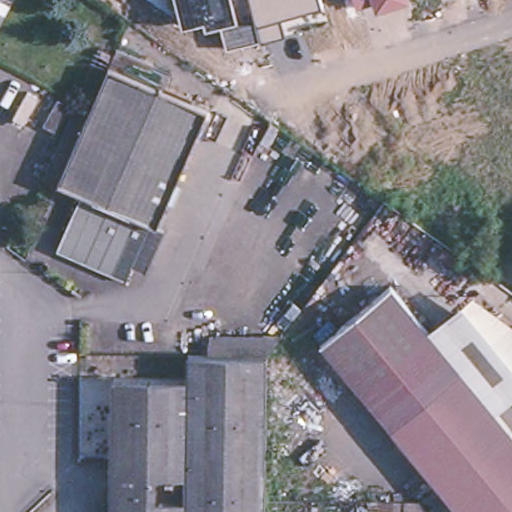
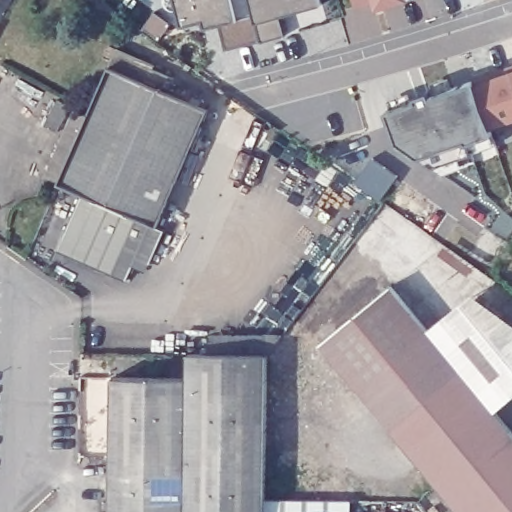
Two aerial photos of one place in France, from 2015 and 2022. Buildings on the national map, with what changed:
unchanged [(264,40),(229,49),(219,11),(208,14),(209,19),(184,25),(178,0),(254,0),(264,40)]
unchanged [(326,3),(283,15),(289,34),(264,41),(264,40),(254,0),(325,0),(326,3)]
unchanged [(361,3),(360,0),(371,0),(361,3)]
unchanged [(379,0),(402,0),(381,6),(379,0)]
unchanged [(117,49),(155,65),(153,70),(169,76),(163,91),(208,110),(157,226),(58,183),(46,178),(75,111),(88,116),(117,49)]
new [(492,127),(497,145),(469,149),(466,142),(489,133),(471,81),(512,68),(512,120),(492,127)]
new [(415,100),(414,96),(427,91),(429,96),(471,81),(489,133),(466,142),(470,152),(431,166),(396,142),(385,110),(415,100)]
unchanged [(59,99),(71,106),(57,132),(45,125),(59,99)]
unchanged [(157,226),(164,230),(149,263),(136,257),(126,280),(58,250),(82,195),(157,226)]
unchanged [(461,512),(320,342),(390,285),(429,331),(494,409),(512,431),(512,512),(461,512)]
unchanged [(494,409),(429,331),(473,294),(512,323),(512,394),(494,409)]
unchanged [(108,512),(111,377),(186,379),(187,353),(267,355),(265,500),(264,512),(108,512)]

